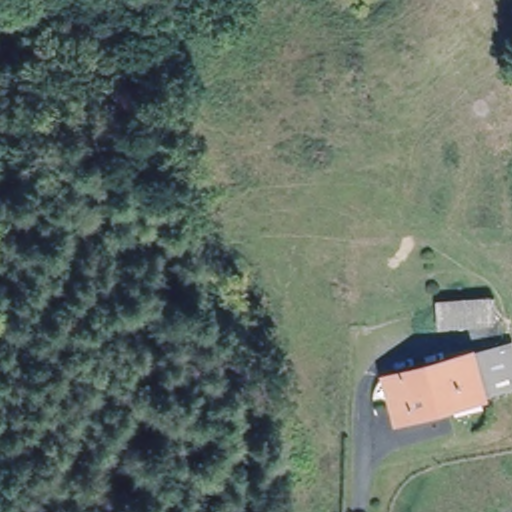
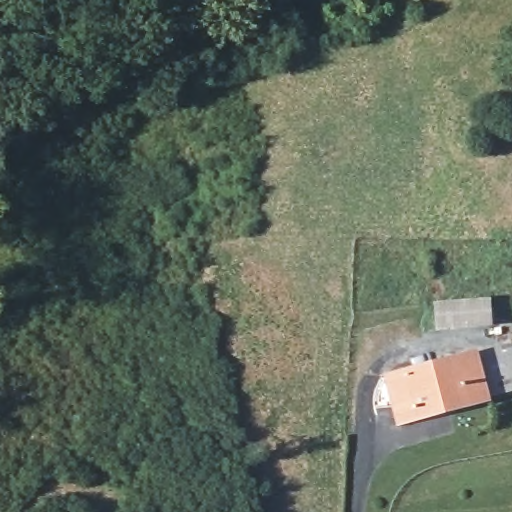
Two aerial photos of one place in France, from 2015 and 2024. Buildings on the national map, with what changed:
unchanged [(490,301),(492,324),(440,328),(438,305),(490,301)]
unchanged [(463,355),(502,344),(512,383),(512,387),(475,397),(463,355)]
unchanged [(403,417),(391,374),(463,355),(475,397),(403,417)]

